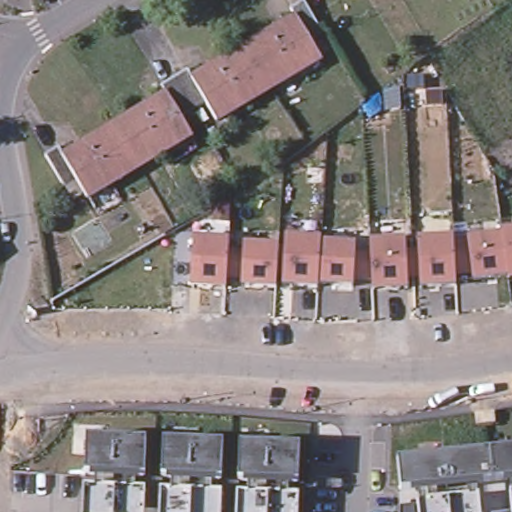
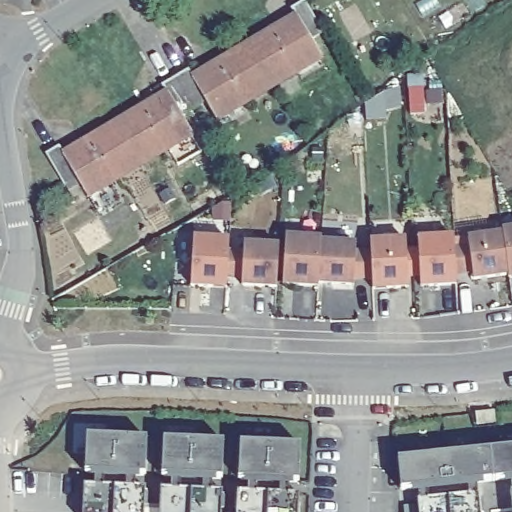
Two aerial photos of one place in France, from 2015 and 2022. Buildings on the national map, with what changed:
unchanged [(296,14),(291,5),(299,0),(303,0),(321,31),(310,37),(322,56),(266,87),(242,46),(296,14)]
unchanged [(176,74),(190,65),(196,74),(242,46),(266,87),(220,114),(210,97),(195,106),(176,74)]
unchanged [(166,91),(161,82),(176,74),(195,106),(181,114),(192,133),(140,164),(114,122),(166,91)]
unchanged [(90,193),(80,175),(66,183),(47,151),(62,143),(66,151),(114,122),(140,164),(90,193)]
unchanged [(507,283),(506,279),(475,284),(472,272),(455,275),(455,288),(418,289),(417,276),(406,278),(407,291),(372,294),(371,276),(354,277),(353,288),(320,286),(319,290),(282,289),(282,273),(275,273),(275,290),(240,289),(241,278),(225,280),(223,292),(192,290),(195,239),(228,240),(229,249),(244,250),(244,243),(283,247),(285,235),(320,236),(320,243),(355,243),(355,250),(370,249),(370,240),(406,239),(407,249),(416,249),(416,239),(454,236),(454,242),(503,233),(502,228),(512,227),(512,282),(507,283)]
unchanged [(134,480),(133,489),(146,489),(145,512),(81,512),(82,484),(97,484),(97,474),(87,474),(90,436),(147,440),(145,480),(134,480)]
unchanged [(211,484),(211,493),(222,493),(222,512),(160,512),(161,491),(172,491),(173,480),(163,480),(165,440),(223,443),(221,484),(211,484)]
unchanged [(287,487),(287,497),(300,497),(300,512),(236,512),(240,446),(300,449),(297,487),(287,487)]
unchanged [(479,488),(481,512),(420,512),(418,495),(403,496),(400,461),(512,449),(512,483),(479,488)]

